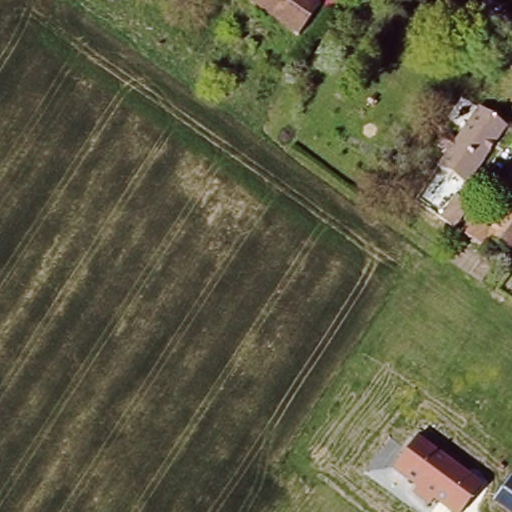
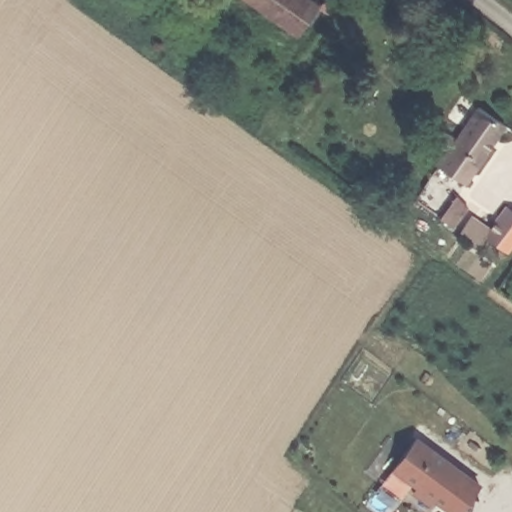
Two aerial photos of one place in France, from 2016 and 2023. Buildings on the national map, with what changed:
unchanged [(319,0),(337,0),(329,11),(319,5),(298,34),(248,0),(314,0),(317,2),(319,0)]
unchanged [(508,126),(470,182),(444,165),(452,152),(445,146),(451,133),(461,138),(484,107),(508,126)]
unchanged [(493,230),(511,207),(512,208),(512,250),(492,235),(482,246),(462,231),(475,216),(493,230)]
unchanged [(482,486),(463,512),(444,512),(430,502),(427,505),(412,494),(415,488),(392,470),(419,436),(482,486)]
unchanged [(512,475),(512,512),(503,512),(489,502),(512,475)]

